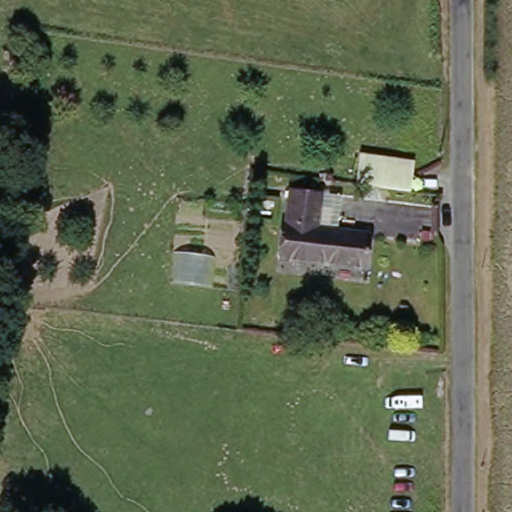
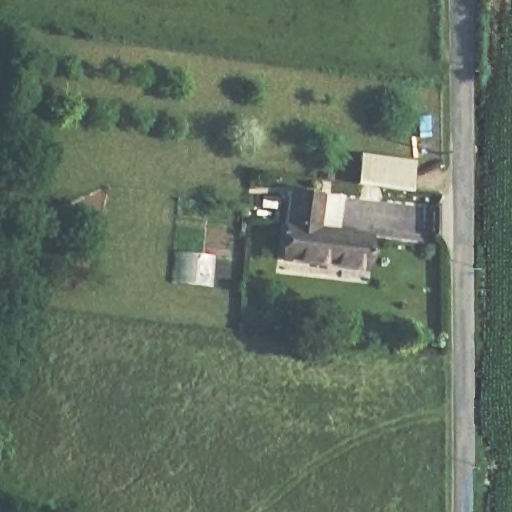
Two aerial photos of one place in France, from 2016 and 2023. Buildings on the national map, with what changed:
unchanged [(356,180),(360,152),(417,161),(411,189),(356,180)]
unchanged [(290,224),(295,225),(301,194),(329,197),(325,230),(346,232),(346,237),(375,241),(371,270),(286,260),(290,224)]

